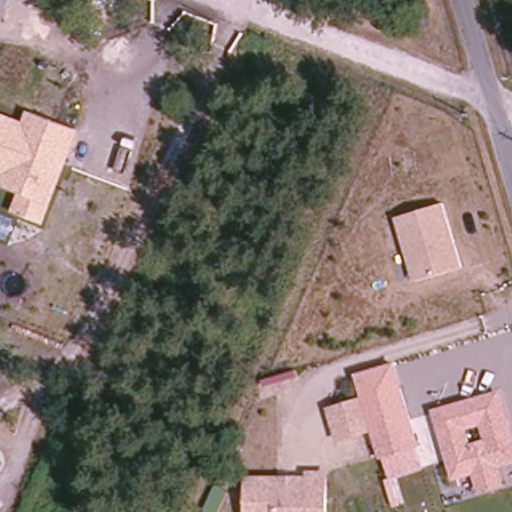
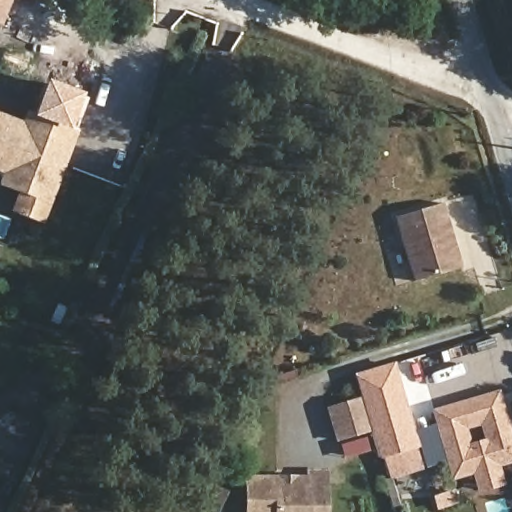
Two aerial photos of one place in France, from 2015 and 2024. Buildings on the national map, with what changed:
unchanged [(1,29),(0,28),(0,0),(12,0),(1,29)]
new [(33,114),(46,80),(84,94),(71,128),(33,114)]
unchanged [(25,120),(27,112),(79,131),(44,222),(14,210),(19,193),(0,186),(2,174),(0,172),(0,112),(25,120)]
unchanged [(416,282),(397,220),(445,205),(463,268),(416,282)]
unchanged [(327,410),(360,399),(353,376),(395,362),(420,447),(380,460),(370,433),(336,442),(327,410)]
unchanged [(512,431),(512,464),(501,468),(507,485),(477,493),(471,475),(451,480),(431,409),(500,390),(512,431)]
unchanged [(305,471),(328,470),(328,512),(247,512),(245,477),(305,476),(305,471)]

